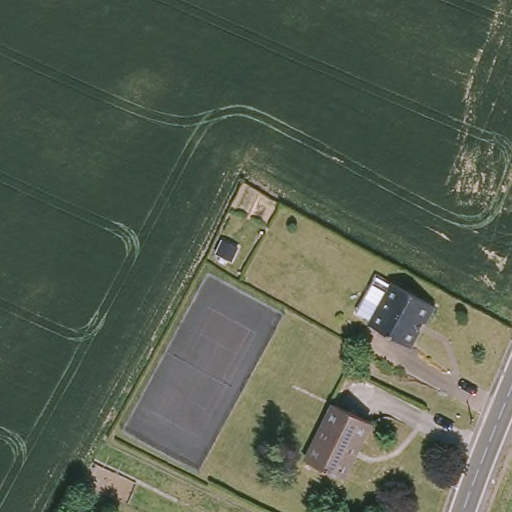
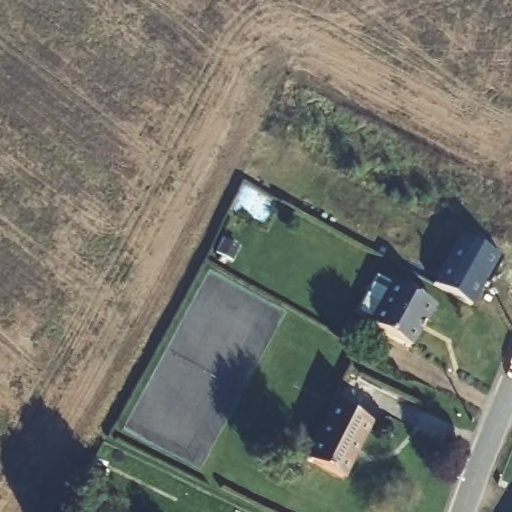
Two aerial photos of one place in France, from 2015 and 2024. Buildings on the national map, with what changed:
new [(497,259),(472,306),(432,287),(459,237),(497,259)]
unchanged [(436,305),(427,321),(424,319),(410,344),(372,323),(394,283),(436,305)]
unchanged [(333,405),(369,422),(342,478),(305,461),(333,405)]

